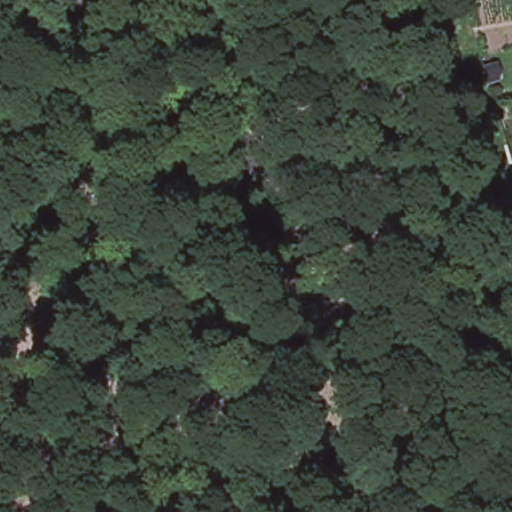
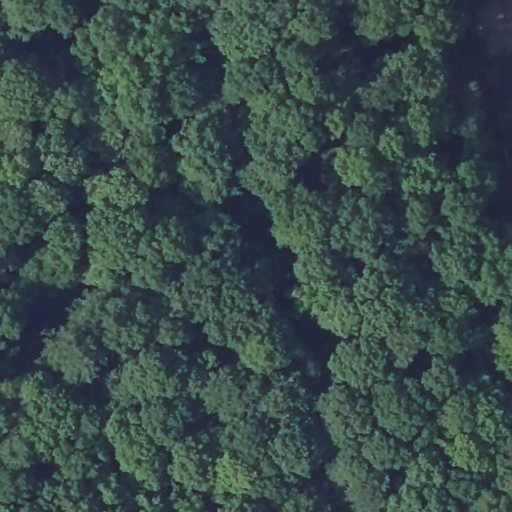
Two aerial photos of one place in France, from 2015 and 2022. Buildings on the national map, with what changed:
[]

